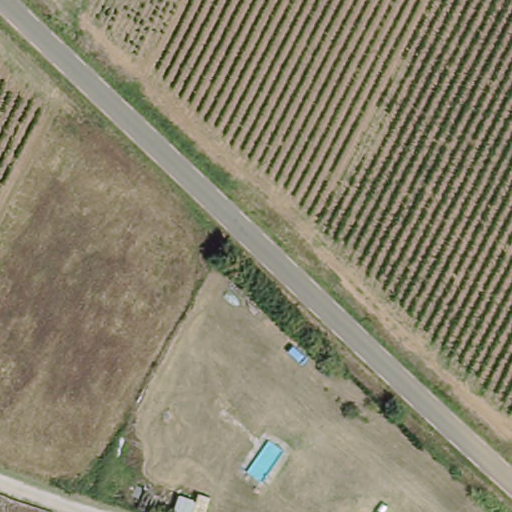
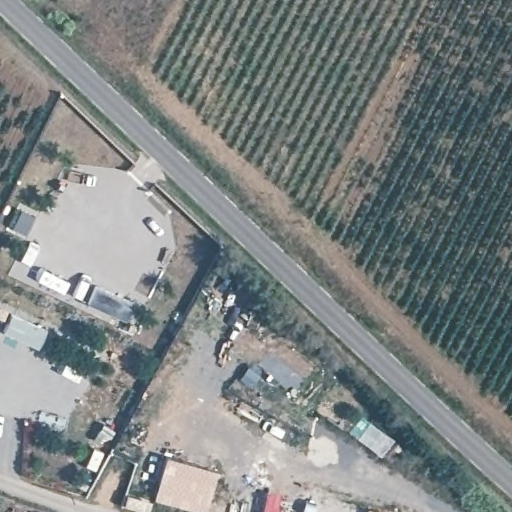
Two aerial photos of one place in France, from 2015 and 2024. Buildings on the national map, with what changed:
new [(217,468),(205,512),(201,512),(154,499),(165,455),(217,468)]

